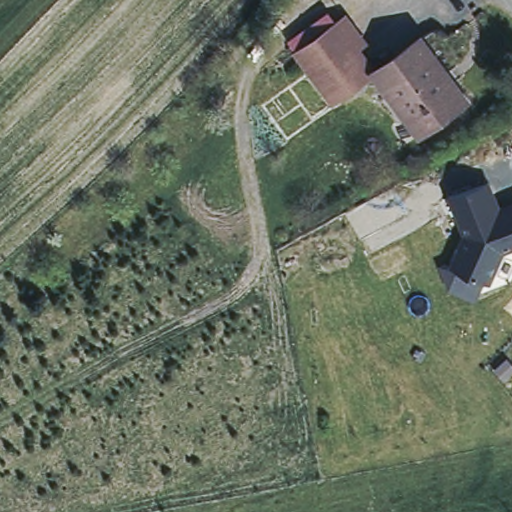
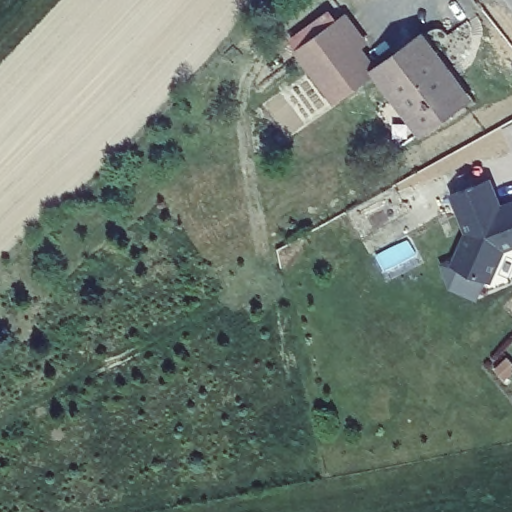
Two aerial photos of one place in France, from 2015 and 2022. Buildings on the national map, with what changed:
unchanged [(297,49),(322,30),(347,11),(365,37),(357,43),(365,54),(375,67),(335,100),(323,84),(297,49)]
unchanged [(375,67),(413,38),(422,31),(455,75),(469,93),(465,96),(429,124),(422,129),(410,113),(375,67)]
unchanged [(490,177),(502,206),(512,202),(512,244),(505,246),(489,278),(452,261),(467,230),(452,191),(490,177)]

